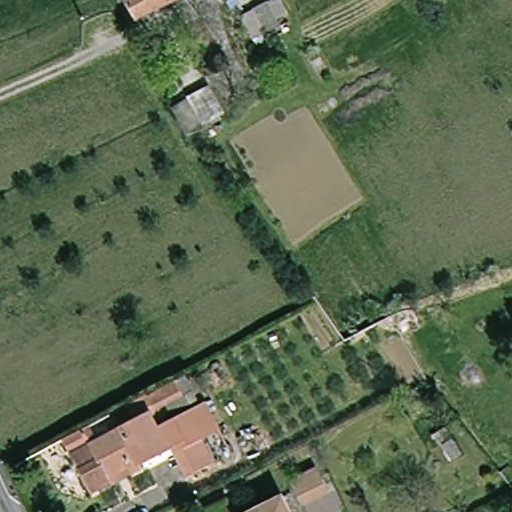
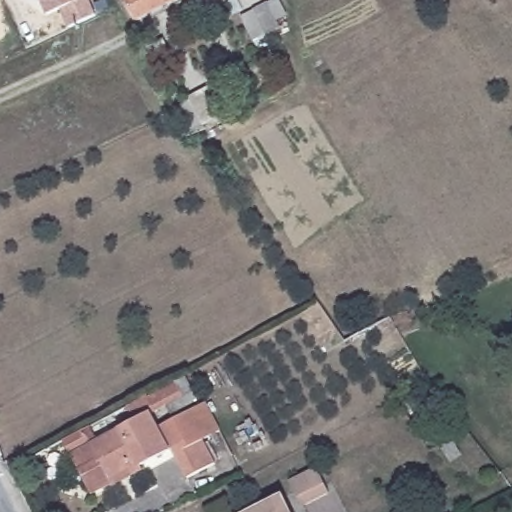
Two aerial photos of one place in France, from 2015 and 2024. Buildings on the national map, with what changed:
new [(68,30),(60,10),(47,16),(40,0),(90,0),(96,16),(68,30)]
unchanged [(125,0),(178,0),(135,22),(125,0)]
unchanged [(278,0),(290,24),(278,31),(256,42),(242,17),(275,0),(278,0)]
unchanged [(168,52),(150,60),(145,47),(162,40),(168,52)]
unchanged [(197,129),(190,133),(177,109),(189,102),(188,100),(210,89),(223,115),(197,129)]
unchanged [(101,443),(142,422),(134,407),(181,382),(190,397),(155,416),(161,428),(175,453),(144,469),(142,465),(112,479),(116,486),(95,496),(83,471),(75,456),(101,443)]
unchanged [(161,428),(212,402),(227,431),(195,447),(193,444),(175,453),(161,428)]
unchanged [(209,443),(221,467),(195,481),(182,457),(209,443)]
unchanged [(318,468),(330,493),(302,507),(290,481),(318,468)]
unchanged [(283,497),(290,512),(253,512),(283,497)]

